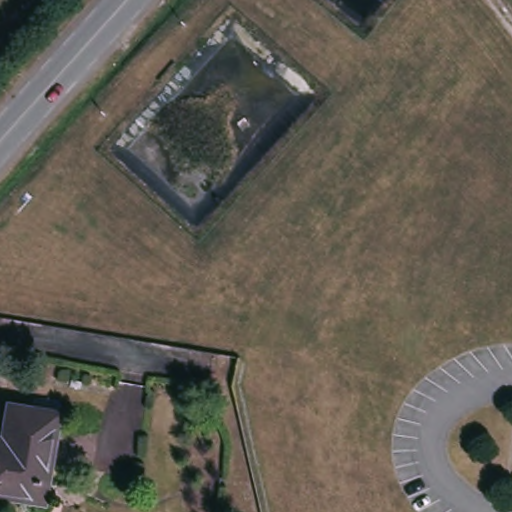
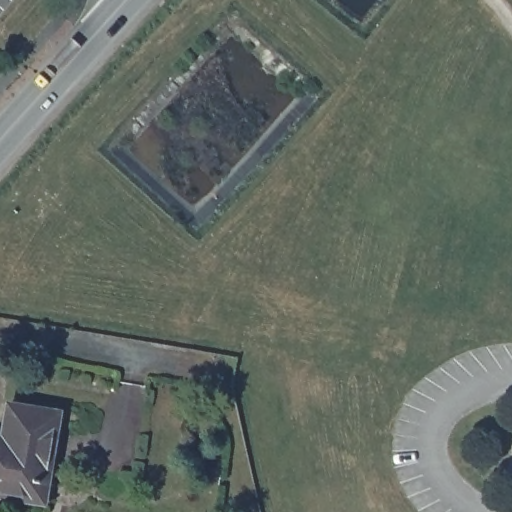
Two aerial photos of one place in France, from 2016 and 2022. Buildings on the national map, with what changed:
unchanged [(40,499),(0,492),(0,400),(11,402),(61,409),(53,467),(48,500),(40,499)]

